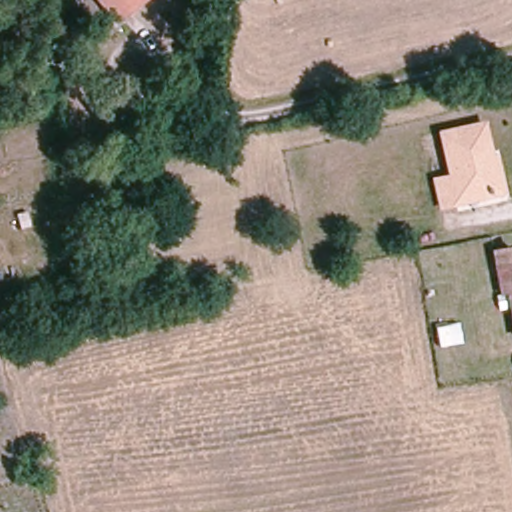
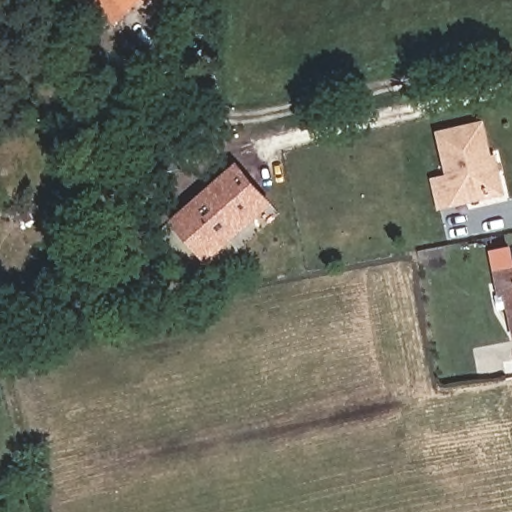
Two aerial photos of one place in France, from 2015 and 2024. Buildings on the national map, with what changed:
unchanged [(100,1),(99,0),(133,0),(116,17),(100,1)]
unchanged [(481,123),(496,189),(438,205),(434,182),(449,178),(439,133),(481,123)]
new [(206,264),(170,222),(238,162),(275,204),(206,264)]
unchanged [(499,256),(512,255),(512,310),(510,310),(499,256)]

